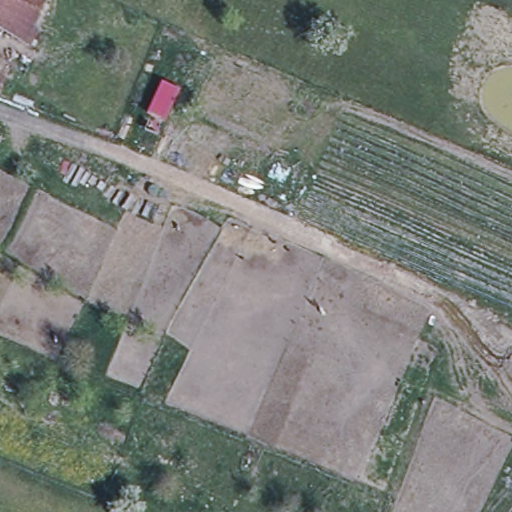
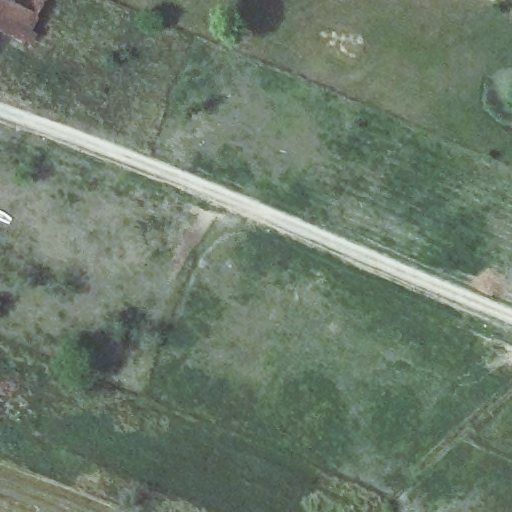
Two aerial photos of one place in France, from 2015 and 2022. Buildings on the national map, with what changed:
unchanged [(16,35),(0,27),(0,0),(36,0),(32,7),(16,35)]

